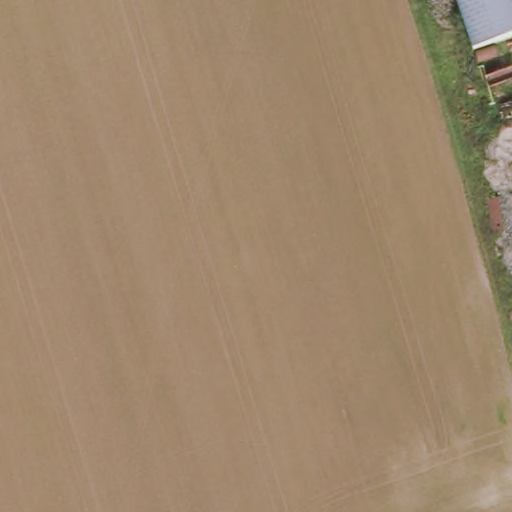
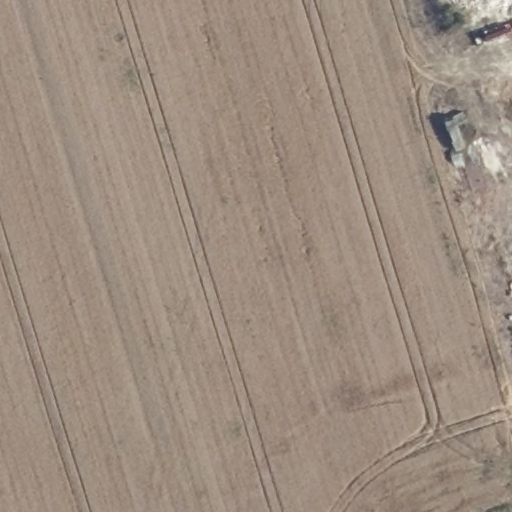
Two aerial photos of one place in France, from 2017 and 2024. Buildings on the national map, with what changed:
demolished [(471,50),(453,0),(512,0),(512,35),(471,50)]

